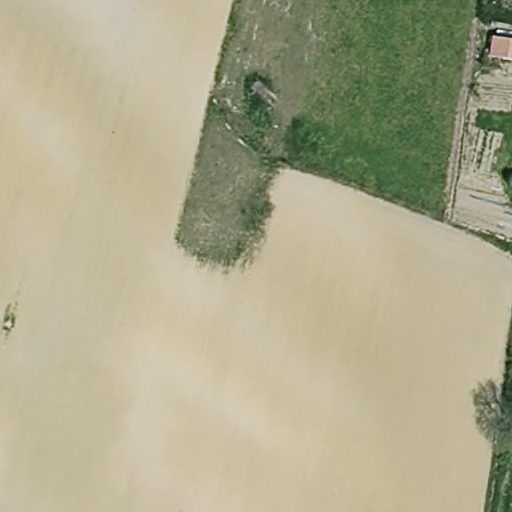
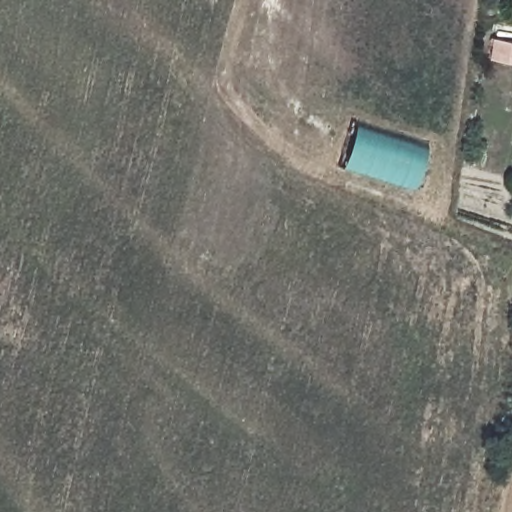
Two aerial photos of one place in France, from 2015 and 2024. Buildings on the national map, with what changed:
unchanged [(497,56),(500,36),(512,37),(512,58),(497,56)]
new [(356,124),(427,146),(414,187),(343,165),(356,124)]

